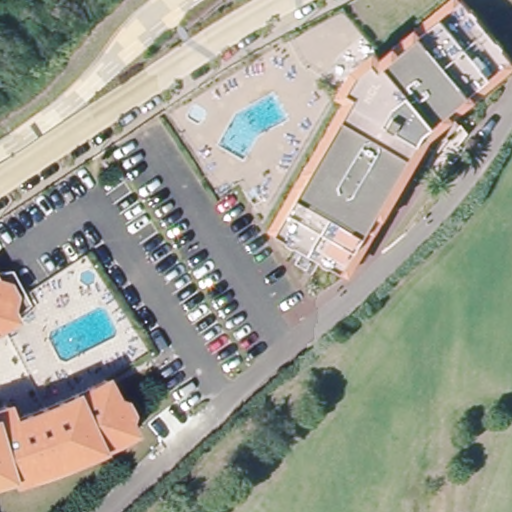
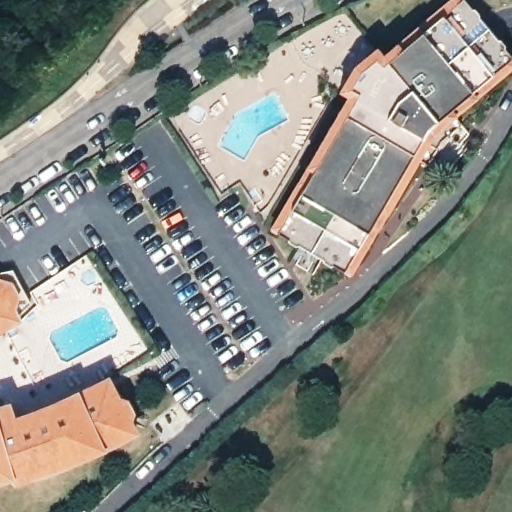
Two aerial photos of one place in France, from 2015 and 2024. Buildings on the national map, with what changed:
unchanged [(346,275),(339,271),(275,233),(268,229),(282,205),(297,178),(306,164),(314,149),(327,126),(337,110),(345,95),(337,90),(351,66),(375,48),(381,55),(397,43),(421,25),(443,9),(455,0),(469,0),(470,1),(512,59),(512,70),(496,83),(473,100),(451,116),(457,124),(437,139),(422,163),(413,159),(405,174),(390,201),(381,215),(373,227),(359,252),(346,275)]
unchanged [(32,298),(20,311),(22,318),(0,332),(0,269),(17,266),(32,298)]
unchanged [(13,410),(17,417),(60,402),(89,389),(111,378),(123,402),(130,402),(136,414),(134,421),(137,428),(141,435),(124,444),(105,452),(89,459),(70,467),(52,473),(34,480),(17,486),(15,481),(0,485),(0,406),(10,403),(13,410)]

